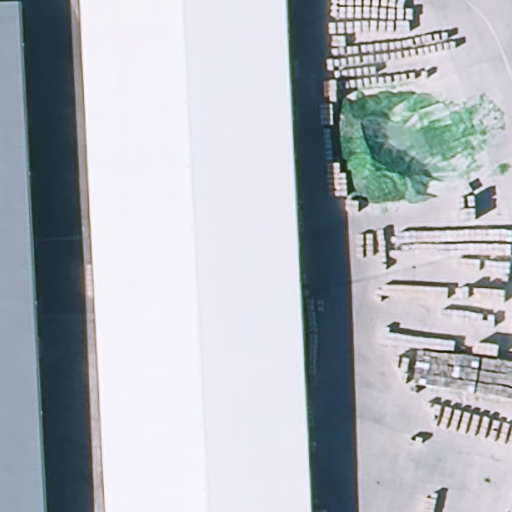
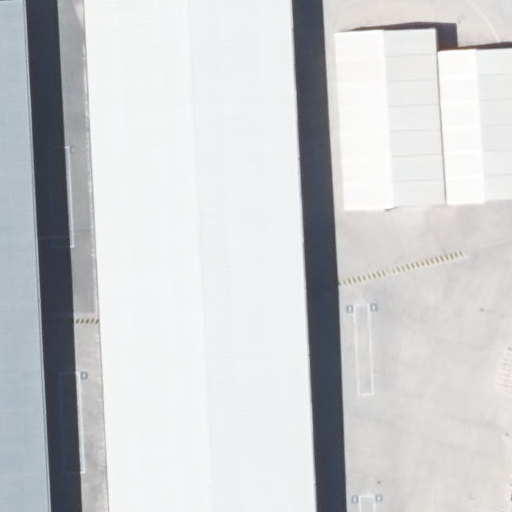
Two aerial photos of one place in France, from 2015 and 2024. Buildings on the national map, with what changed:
unchanged [(314,512),(109,512),(82,0),(288,0),(314,512)]
unchanged [(49,512),(0,512),(0,8),(23,6),(49,512)]
new [(348,211),(337,36),(438,29),(440,56),(512,51),(512,202),(450,206),(348,211)]

